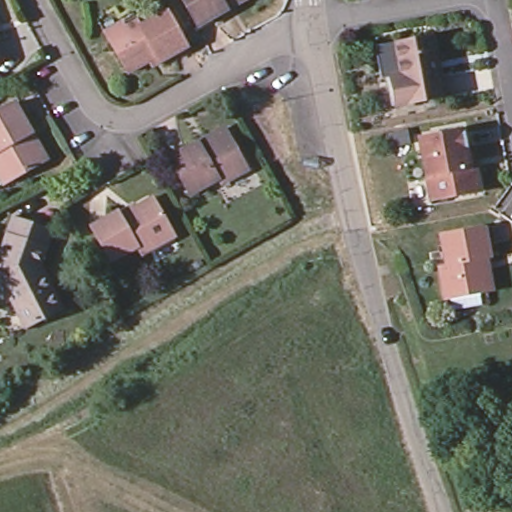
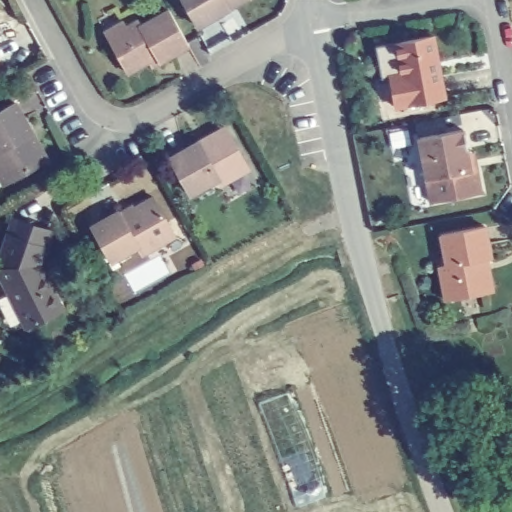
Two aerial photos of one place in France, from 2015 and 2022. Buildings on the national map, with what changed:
unchanged [(233,2),(224,7),(195,24),(181,0),(236,0),(233,2)]
unchanged [(142,55),(122,66),(105,35),(134,19),(137,24),(165,8),(185,42),(155,59),(147,63),(142,55)]
unchanged [(405,115),(400,85),(392,86),(386,54),(407,50),(407,51),(444,44),(455,105),(405,115)]
unchanged [(35,167),(0,186),(0,111),(12,105),(25,132),(42,163),(35,167)]
unchanged [(217,181),(214,175),(187,190),(167,155),(195,140),(220,125),(224,130),(243,166),(217,181)]
unchanged [(480,159),(482,171),(487,200),(435,209),(423,145),(468,136),(472,160),(480,159)]
unchanged [(172,236),(140,255),(135,247),(109,261),(89,227),(106,216),(109,220),(150,196),(172,236)]
unchanged [(50,235),(45,250),(39,267),(34,271),(42,286),(47,285),(60,307),(24,327),(0,283),(0,253),(11,222),(50,235)]
unchanged [(495,260),(488,261),(494,295),(450,302),(444,268),(452,266),(447,237),(490,230),(495,260)]

